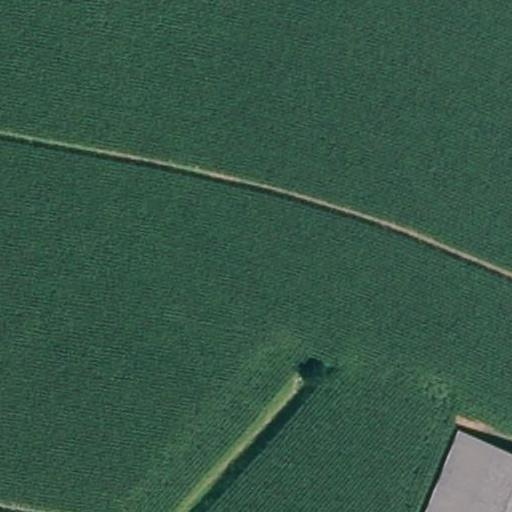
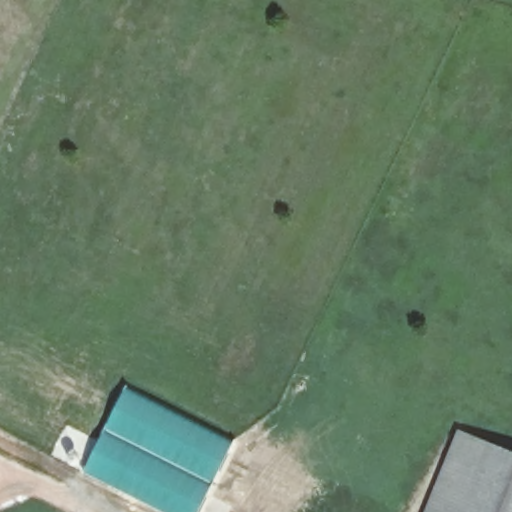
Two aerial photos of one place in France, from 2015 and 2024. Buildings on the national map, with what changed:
new [(128,387),(231,445),(202,512),(165,512),(88,477),(128,387)]
unchanged [(458,432),(512,453),(512,512),(427,512),(452,448),(458,432)]

